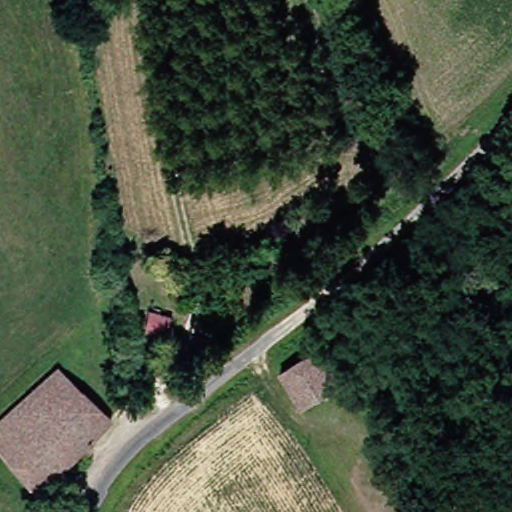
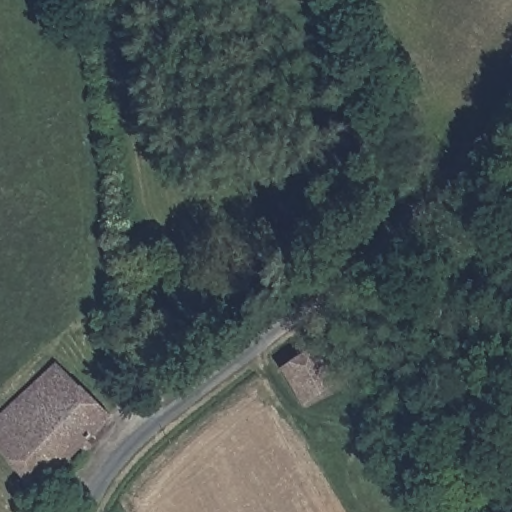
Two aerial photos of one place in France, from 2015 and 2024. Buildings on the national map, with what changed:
unchanged [(318,408),(287,361),(325,342),(346,387),(318,408)]
unchanged [(68,355),(117,415),(60,475),(12,414),(68,355)]
unchanged [(60,475),(35,498),(0,459),(0,426),(12,414),(60,475)]

